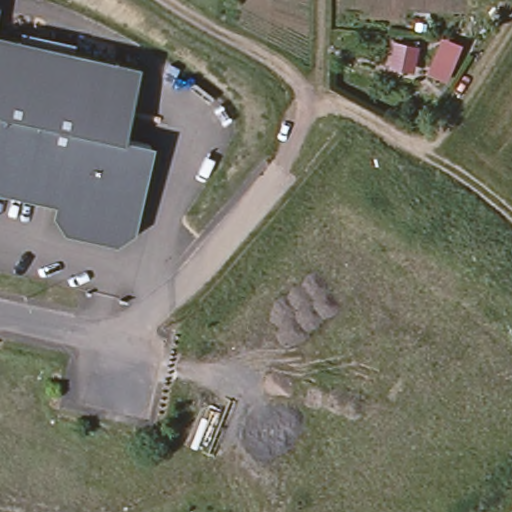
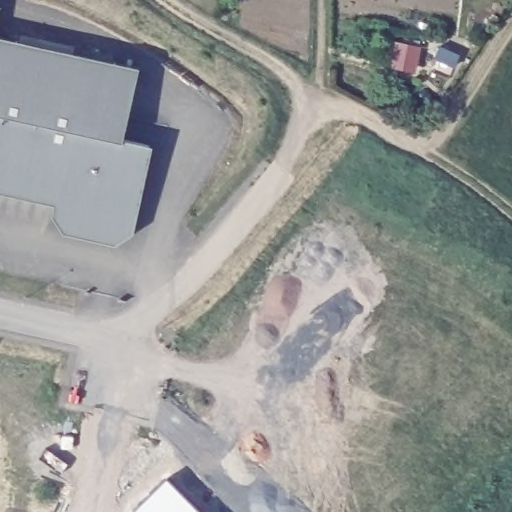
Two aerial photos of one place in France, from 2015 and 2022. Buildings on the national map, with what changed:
unchanged [(76,53),(138,66),(125,129),(152,137),(130,235),(112,245),(62,233),(50,214),(52,203),(0,192),(0,29),(76,45),(76,53)]
unchanged [(394,42),(419,46),(414,72),(391,66),(394,42)]
unchanged [(439,45),(440,44),(461,53),(457,62),(435,53),(439,45)]
new [(165,479),(196,512),(134,512),(165,479)]

